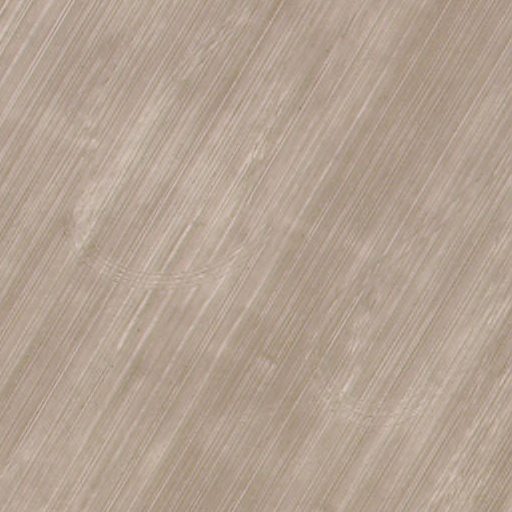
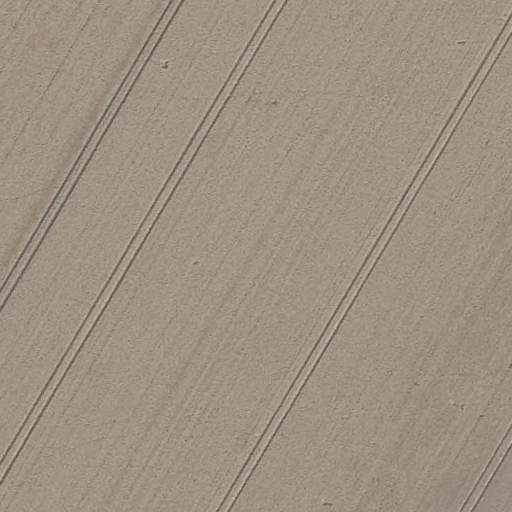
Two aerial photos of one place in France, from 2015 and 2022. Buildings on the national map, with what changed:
[]

